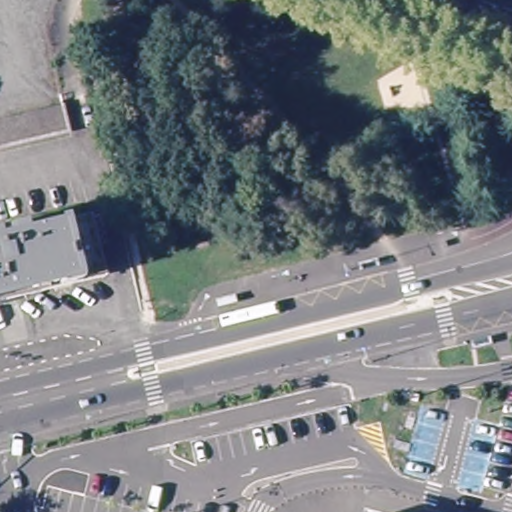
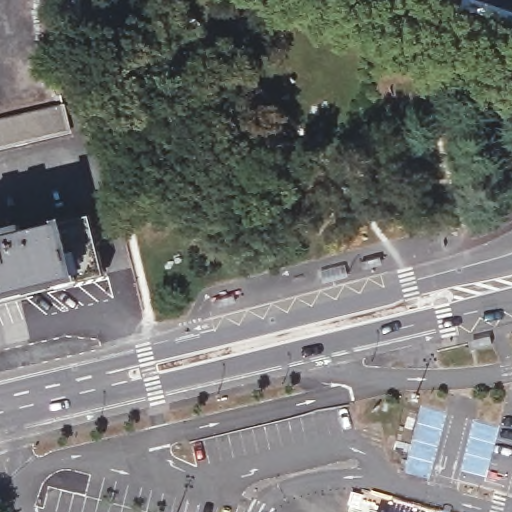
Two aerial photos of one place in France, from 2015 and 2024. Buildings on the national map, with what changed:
unchanged [(75,124),(0,143),(0,115),(69,100),(75,124)]
unchanged [(21,231),(87,215),(103,272),(0,300),(0,228),(20,224),(21,231)]

